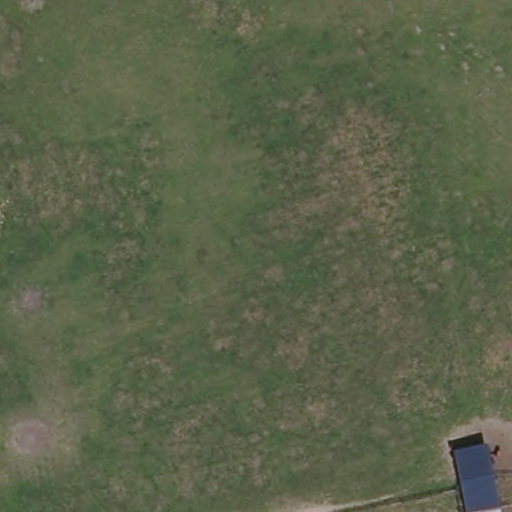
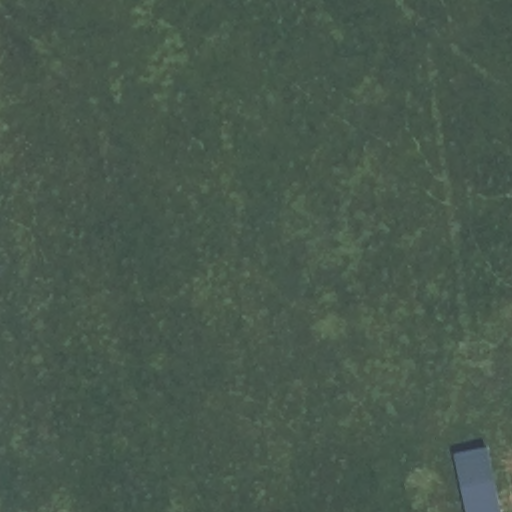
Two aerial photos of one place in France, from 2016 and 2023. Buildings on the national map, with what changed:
unchanged [(498,512),(468,512),(463,458),(492,454),(498,512)]

